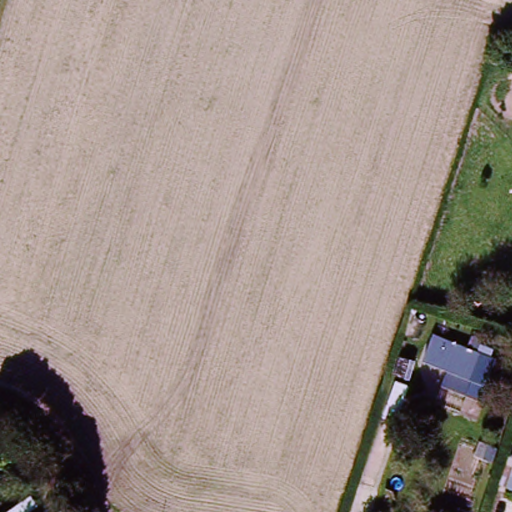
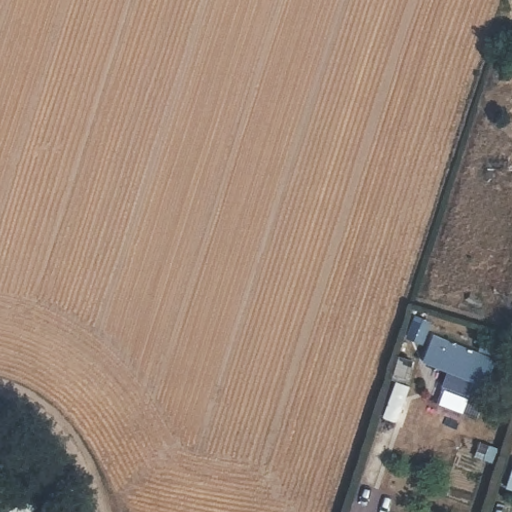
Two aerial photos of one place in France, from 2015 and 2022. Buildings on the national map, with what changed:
unchanged [(482,361),(474,383),(468,381),(460,400),(435,390),(441,376),(416,366),(427,339),(482,361)]
unchanged [(465,340),(476,343),(476,342),(490,346),(485,359),(471,355),(472,353),(461,350),(465,340)]
unchanged [(40,512),(4,512),(30,496),(40,512)]

